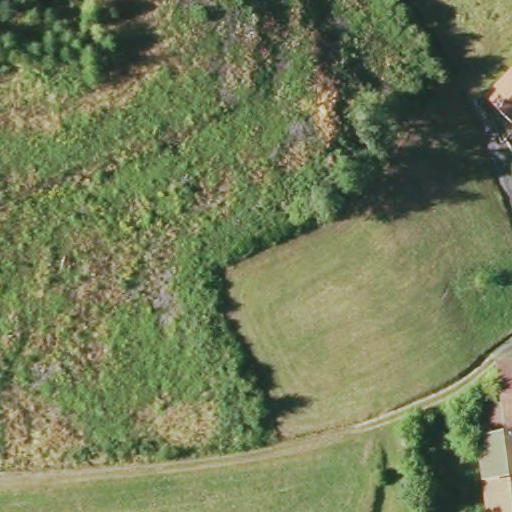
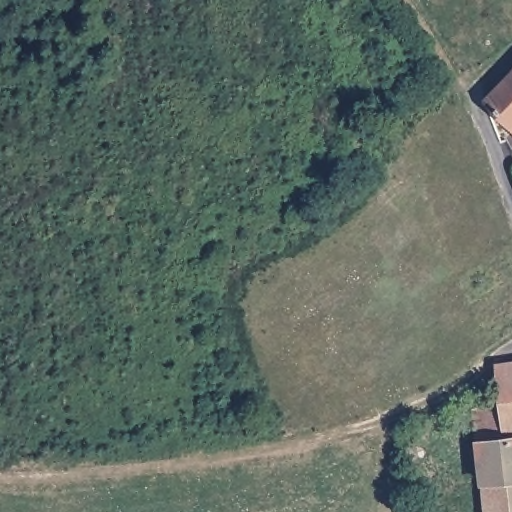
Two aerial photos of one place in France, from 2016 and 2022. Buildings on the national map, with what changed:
unchanged [(512,75),(512,131),(484,103),(512,75)]
unchanged [(489,411),(508,408),(505,365),(512,364),(512,512),(497,512),(489,411)]

